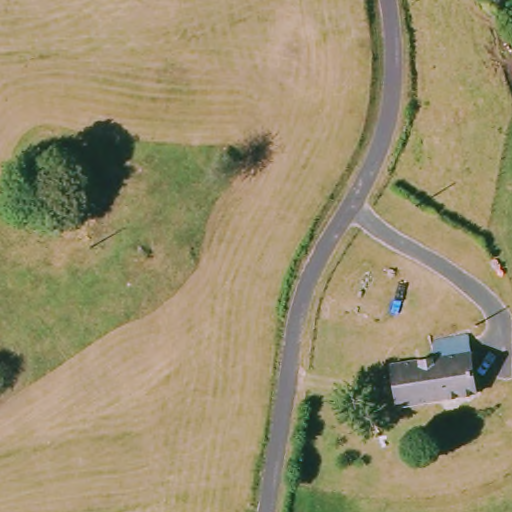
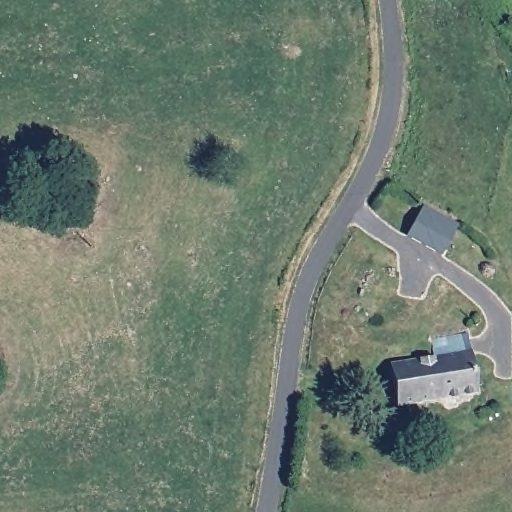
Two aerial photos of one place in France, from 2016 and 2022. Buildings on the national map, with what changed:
new [(407,236),(403,234),(417,209),(421,211),(422,207),(459,227),(458,230),(461,231),(447,256),(443,255),(407,236)]
unchanged [(463,336),(473,395),(394,408),(388,367),(429,361),(427,342),(463,336)]

